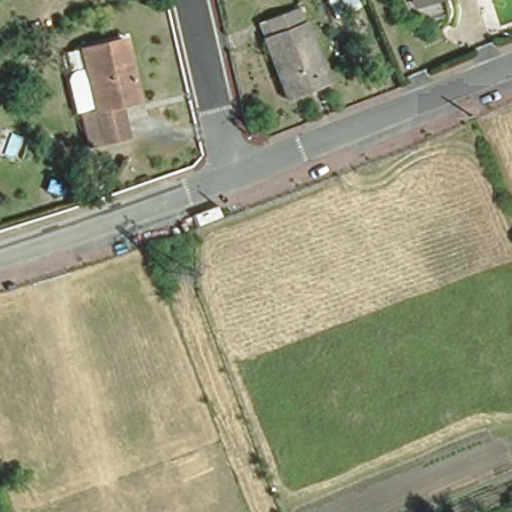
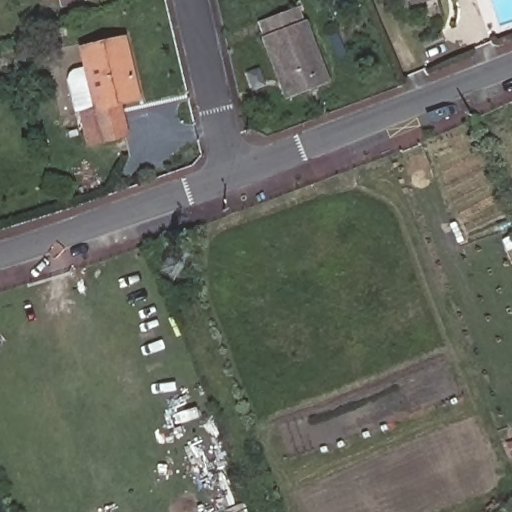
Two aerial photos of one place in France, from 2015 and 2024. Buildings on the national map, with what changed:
unchanged [(423,0),(411,5),(410,0),(423,0)]
unchanged [(297,12),(331,90),(288,107),(257,29),(297,12)]
unchanged [(139,99),(121,104),(126,134),(84,145),(76,112),(72,112),(59,52),(74,47),(124,36),(139,99)]

